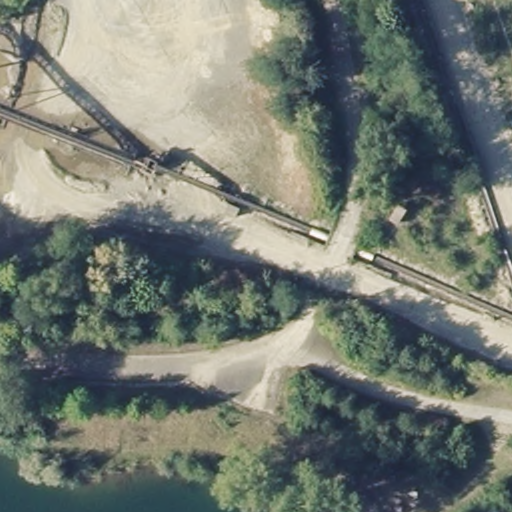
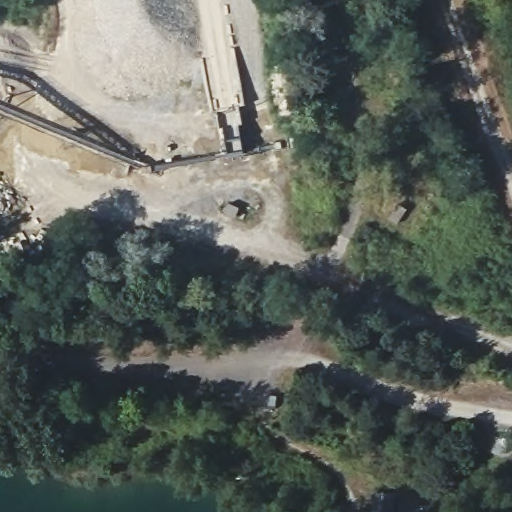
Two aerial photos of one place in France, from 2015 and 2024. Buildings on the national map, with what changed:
unchanged [(228,204),(240,209),(236,219),(224,213),(228,204)]

